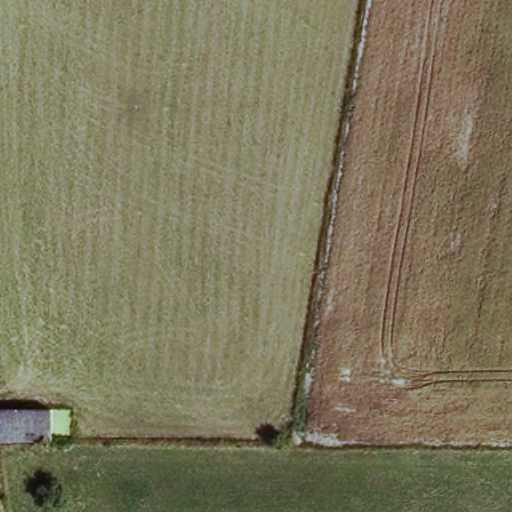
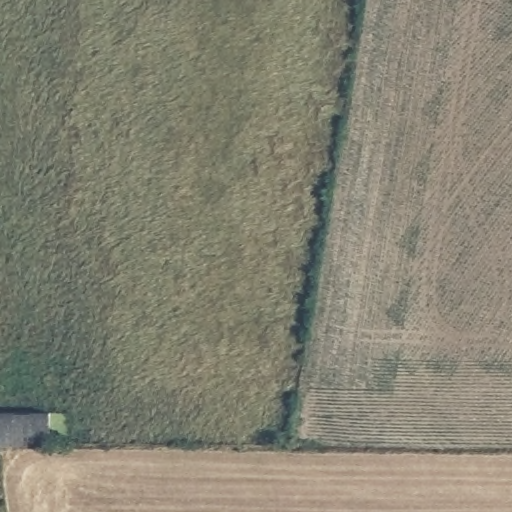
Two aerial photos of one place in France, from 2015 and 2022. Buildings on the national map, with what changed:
unchanged [(0,440),(0,414),(44,415),(44,440),(0,440)]

